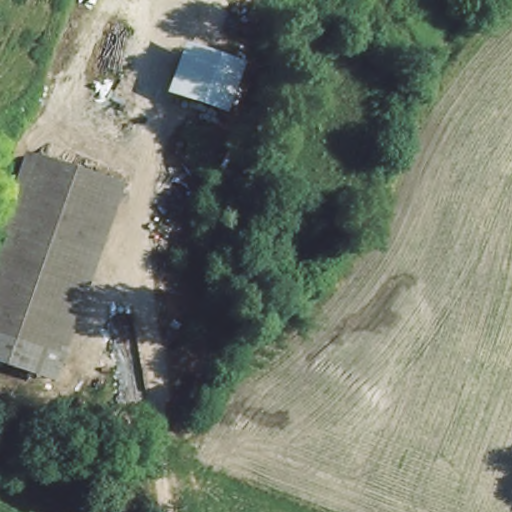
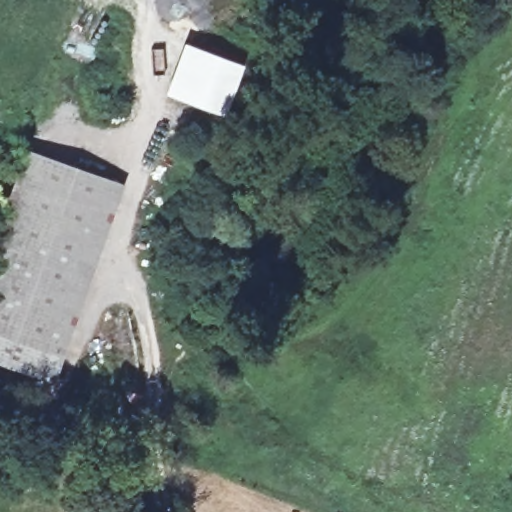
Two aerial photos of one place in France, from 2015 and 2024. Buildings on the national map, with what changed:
unchanged [(245,59),(223,116),(160,94),(180,35),(245,59)]
unchanged [(118,203),(54,369),(0,349),(0,249),(30,169),(118,203)]

